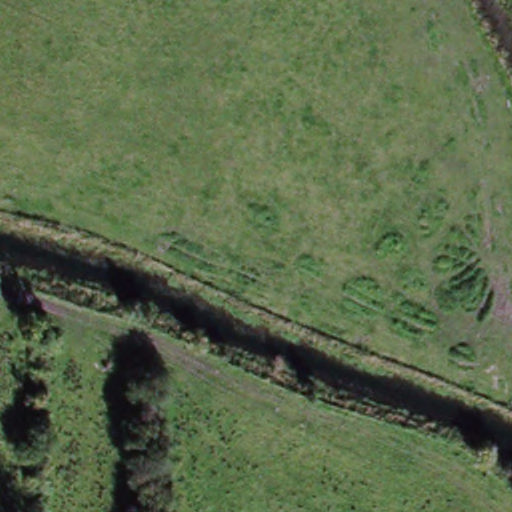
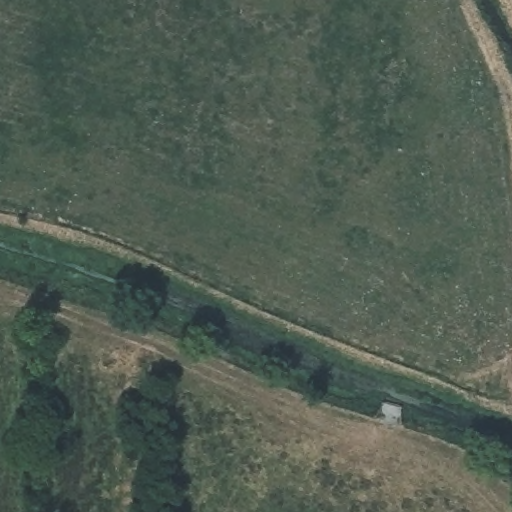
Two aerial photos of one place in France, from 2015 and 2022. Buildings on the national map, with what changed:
[]

